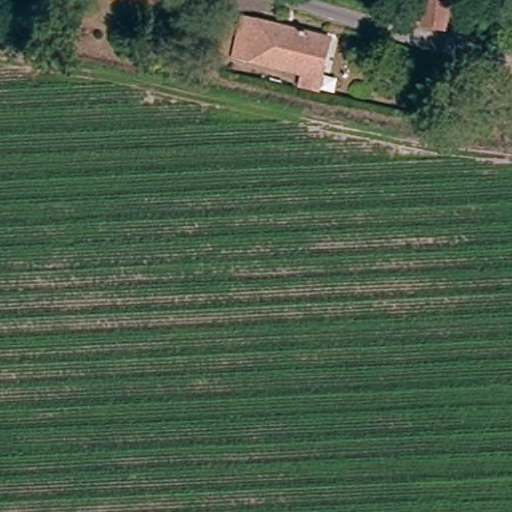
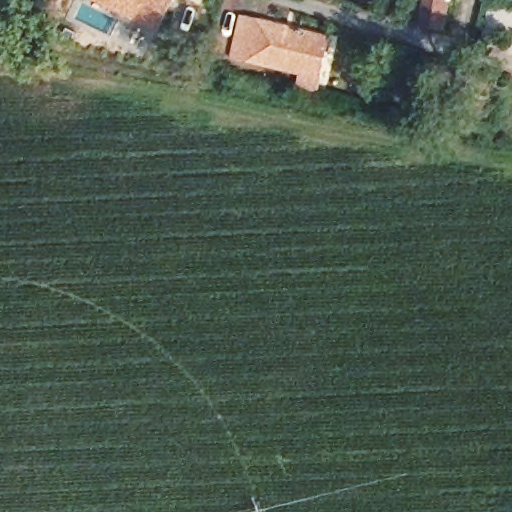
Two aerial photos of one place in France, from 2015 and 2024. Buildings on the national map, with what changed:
unchanged [(0,17),(0,0),(4,0),(4,17),(0,17)]
new [(98,0),(180,0),(164,35),(97,1),(98,0)]
unchanged [(427,0),(448,0),(445,22),(424,19),(427,0)]
unchanged [(298,91),(301,76),(246,63),(231,60),(240,21),(255,25),(329,42),(320,81),(316,96),(298,91)]

